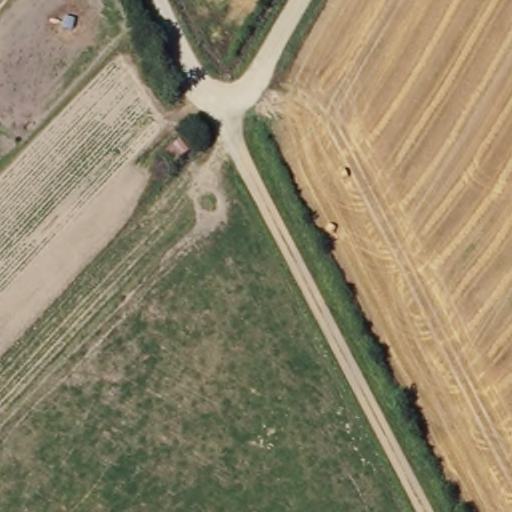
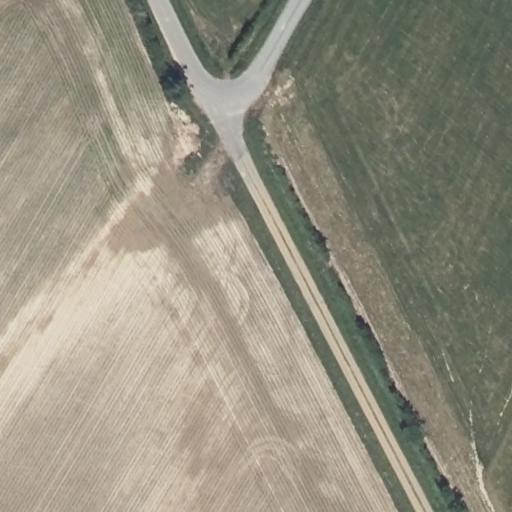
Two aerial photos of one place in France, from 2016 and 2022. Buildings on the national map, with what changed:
unchanged [(192,167),(180,162),(191,141),(204,147),(192,167)]

